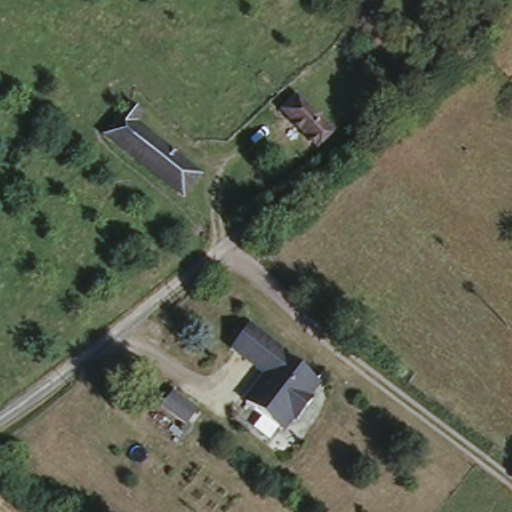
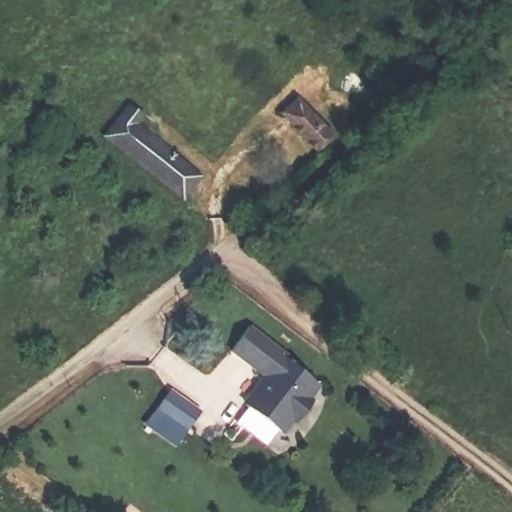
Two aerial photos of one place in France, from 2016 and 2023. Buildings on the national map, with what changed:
unchanged [(353,0),(365,0),(354,11),(349,4),(353,0)]
unchanged [(333,136),(314,153),(279,112),(298,96),(333,136)]
unchanged [(147,117),(140,126),(200,179),(181,200),(104,133),(132,103),(147,117)]
unchanged [(293,360),(291,363),(323,391),(317,398),(324,405),(304,428),(296,423),(285,437),(248,406),(267,381),(232,352),(253,325),(293,360)]
new [(170,388),(200,408),(175,447),(145,424),(170,388)]

